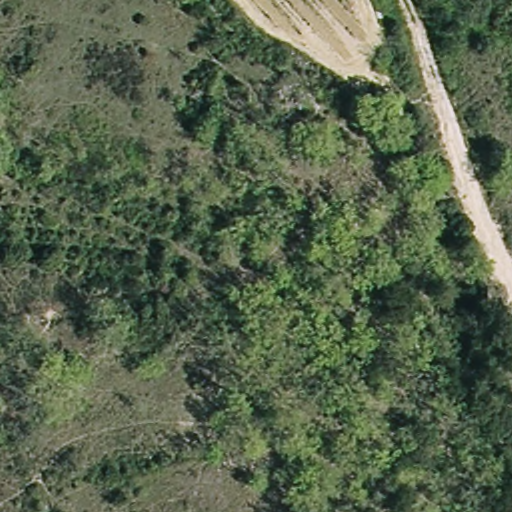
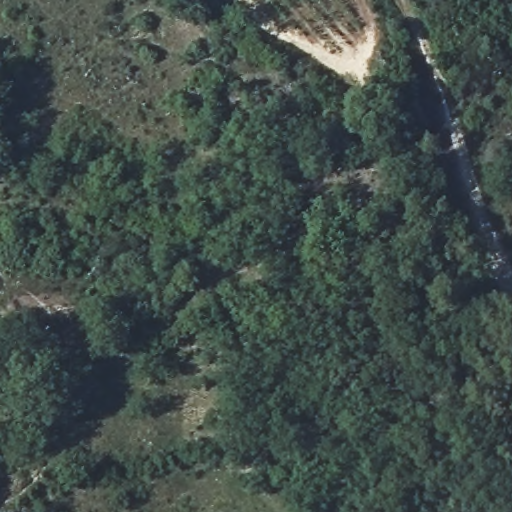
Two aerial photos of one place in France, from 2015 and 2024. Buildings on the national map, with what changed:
unchanged [(299,113),(282,113),(278,96),(296,95),(299,113)]

